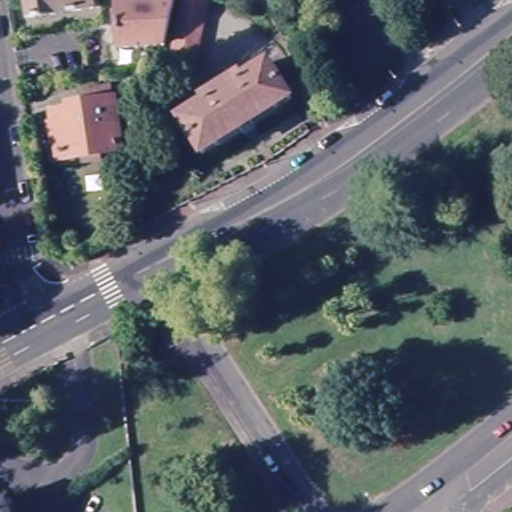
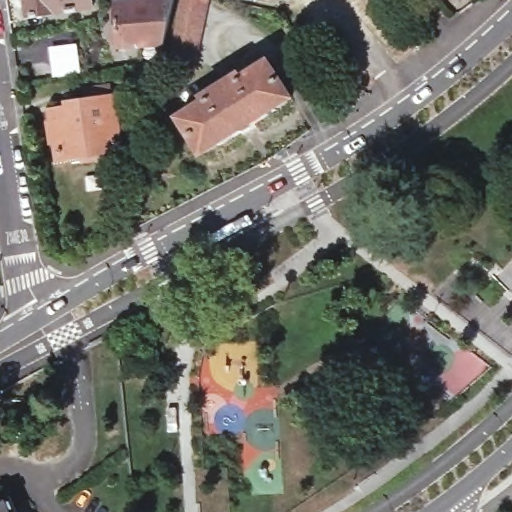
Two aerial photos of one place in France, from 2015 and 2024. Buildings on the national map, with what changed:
unchanged [(29,16),(27,0),(91,0),(92,7),(29,16)]
unchanged [(116,4),(136,3),(136,0),(173,0),(164,44),(119,49),(116,4)]
unchanged [(181,0),(207,0),(192,71),(167,66),(181,0)]
unchanged [(210,104),(207,99),(245,75),(248,79),(273,64),(294,99),(207,154),(183,120),(210,104)]
unchanged [(118,93),(127,154),(127,155),(126,156),(70,164),(68,147),(62,148),(60,142),(58,129),(65,129),(64,119),(76,117),(77,116),(77,113),(96,109),(94,96),(118,93)]
unchanged [(12,496),(20,512),(0,512),(0,501),(12,496)]

